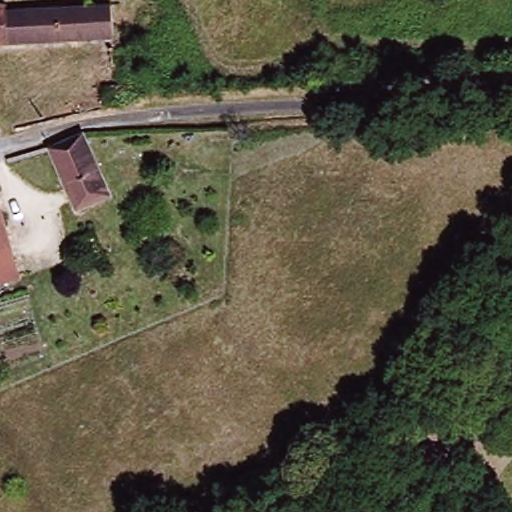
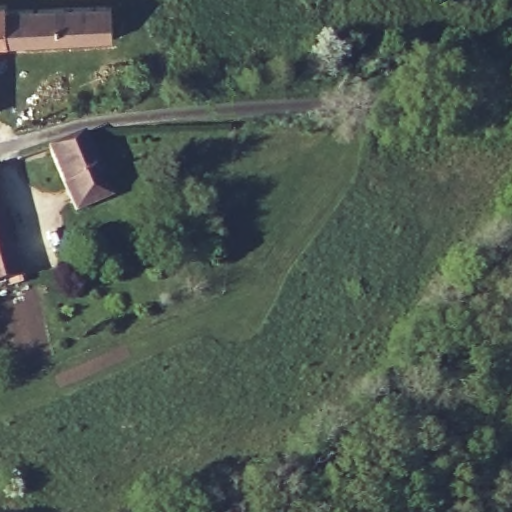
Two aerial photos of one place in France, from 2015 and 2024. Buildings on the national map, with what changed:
unchanged [(112,17),(112,50),(0,49),(0,15),(33,16),(112,17)]
unchanged [(116,195),(72,210),(43,149),(85,135),(116,195)]
unchanged [(0,285),(0,209),(17,282),(0,285)]

